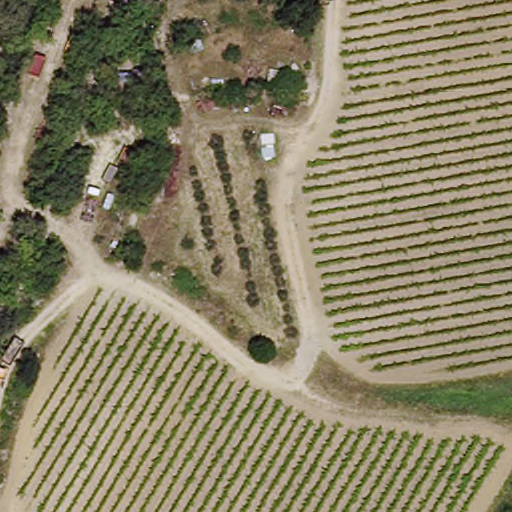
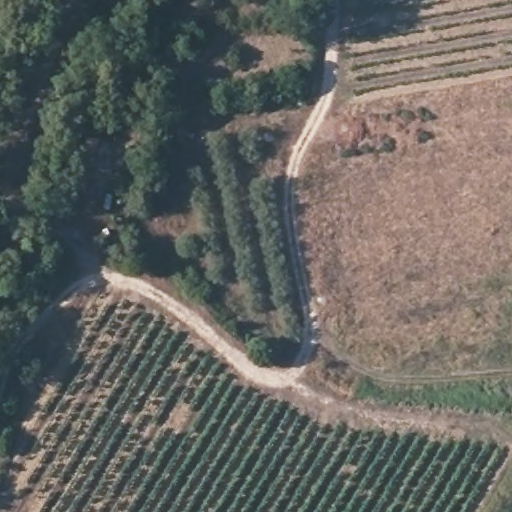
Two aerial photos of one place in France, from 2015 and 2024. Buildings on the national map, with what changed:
[]

